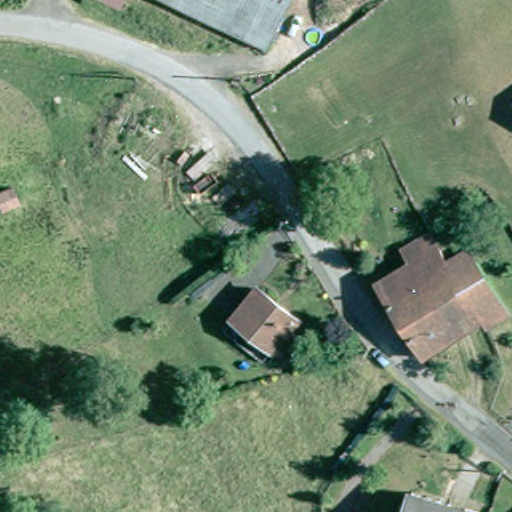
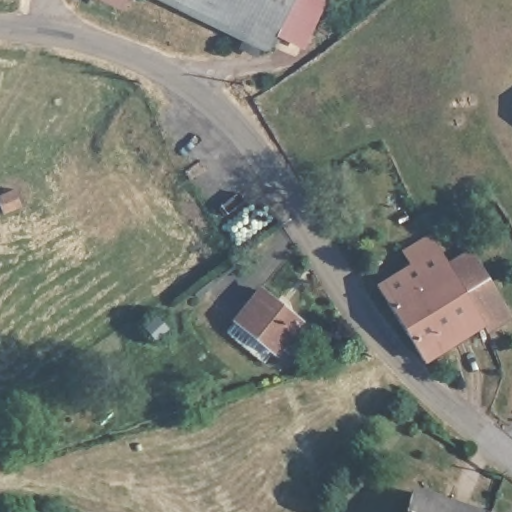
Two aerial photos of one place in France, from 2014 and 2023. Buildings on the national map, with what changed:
unchanged [(118,0),(118,1),(116,0),(118,0)]
unchanged [(168,0),(287,0),(265,46),(168,0)]
new [(326,0),(303,45),(272,31),(287,0),(326,0)]
unchanged [(10,215),(0,219),(0,199),(2,198),(10,215)]
unchanged [(445,261),(480,318),(422,357),(373,281),(405,260),(397,249),(427,230),(442,257),(445,261)]
unchanged [(465,249),(505,312),(483,324),(480,318),(445,261),(465,249)]
unchanged [(228,328),(262,286),(300,316),(267,359),(228,328)]
unchanged [(410,490),(480,512),(403,512),(410,490)]

